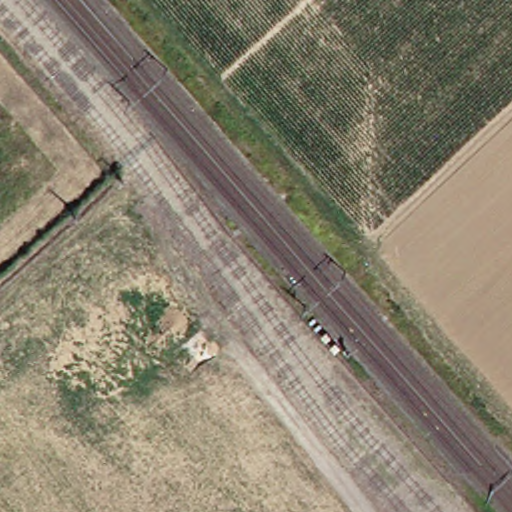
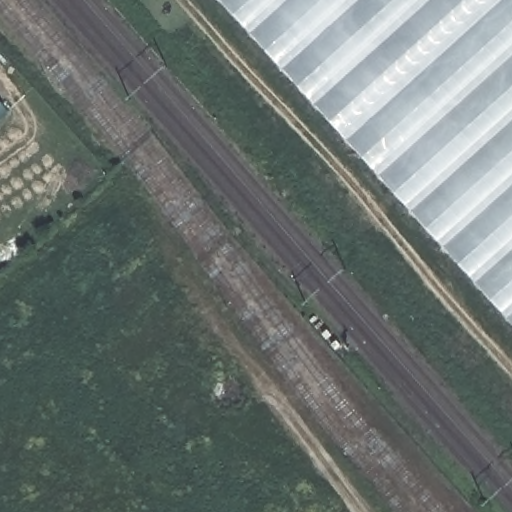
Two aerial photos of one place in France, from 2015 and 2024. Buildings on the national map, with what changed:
new [(222,0),(512,0),(512,321),(222,0)]
new [(0,101),(9,113),(0,120),(0,101)]

